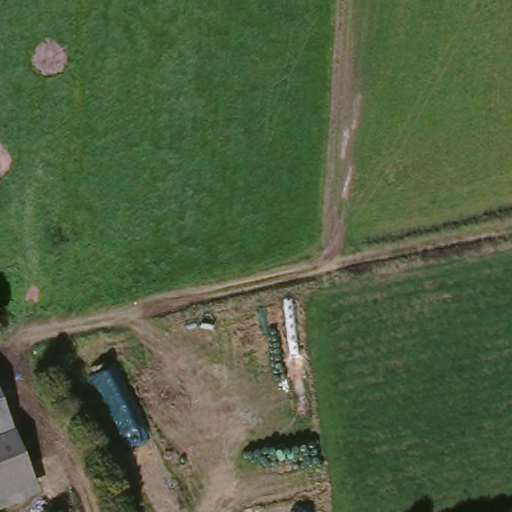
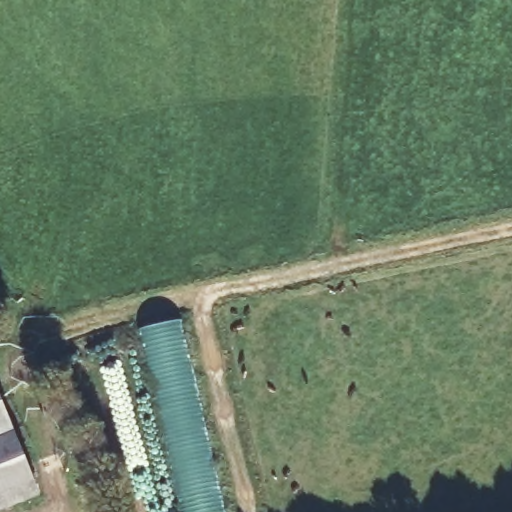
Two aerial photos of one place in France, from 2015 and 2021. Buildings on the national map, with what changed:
new [(176,322),(222,512),(183,512),(141,330),(176,322)]
unchanged [(13,512),(0,512),(0,409),(39,502),(13,512)]

